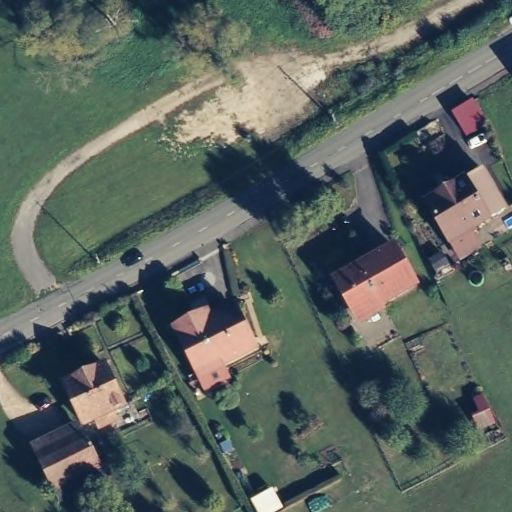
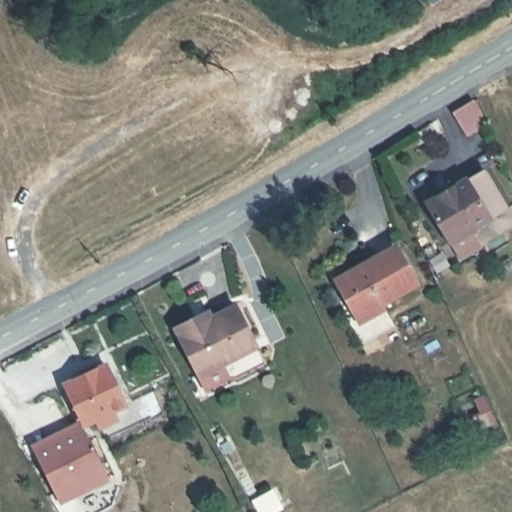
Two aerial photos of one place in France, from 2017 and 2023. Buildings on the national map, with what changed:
unchanged [(430,0),(442,0),(435,6),(430,0)]
unchanged [(472,101),(486,124),(467,135),(453,112),(472,101)]
unchanged [(477,174),(500,213),(468,232),(471,236),(467,239),(464,235),(445,247),(422,208),(477,174)]
unchanged [(331,284),(389,252),(410,288),(375,308),(377,311),(359,322),(354,325),(343,305),(331,284)]
unchanged [(190,371),(172,333),(191,324),(202,318),(205,325),(230,313),(249,351),(212,370),(194,379),(190,371)]
unchanged [(100,369),(119,409),(107,415),(111,423),(95,431),(90,422),(82,427),(78,428),(59,388),(100,369)]
unchanged [(473,417),(480,413),(474,399),(482,395),(492,418),(493,422),(478,429),(477,424),(473,417)]
unchanged [(78,494),(55,505),(32,458),(28,450),(72,428),(77,436),(95,474),(100,483),(78,494)]

